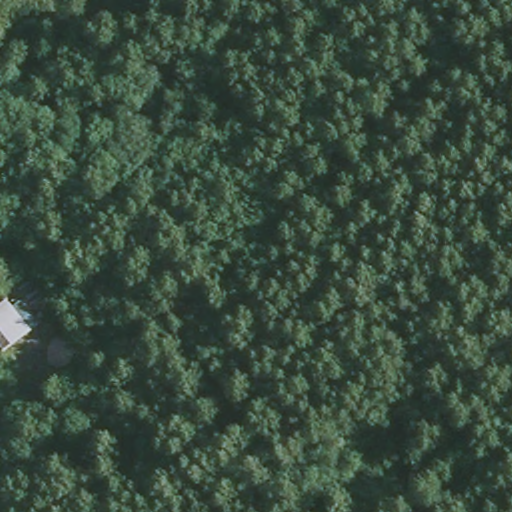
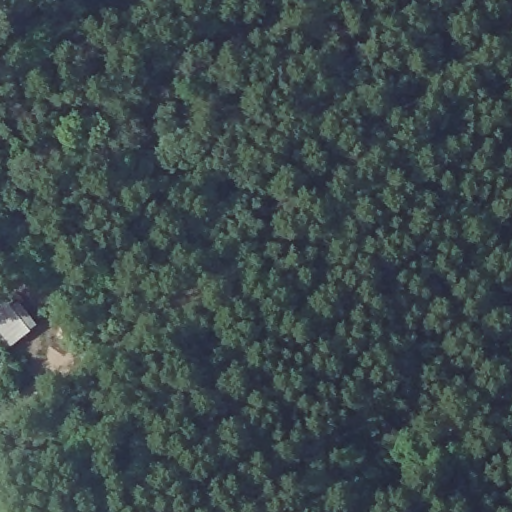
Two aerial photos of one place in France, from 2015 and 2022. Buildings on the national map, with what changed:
unchanged [(13,306),(21,301),(37,326),(3,351),(0,348),(0,304),(6,298),(13,306)]

